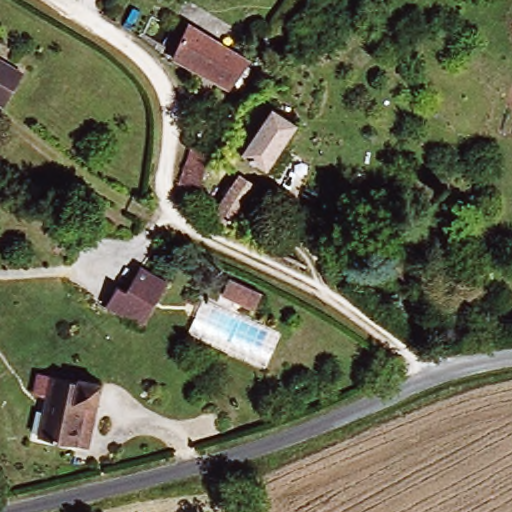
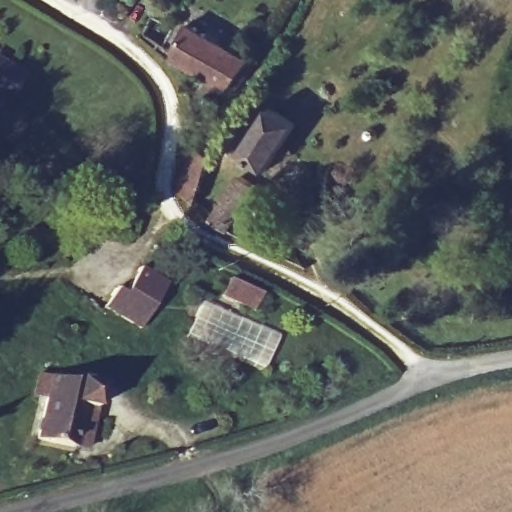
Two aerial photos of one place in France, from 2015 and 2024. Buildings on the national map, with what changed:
unchanged [(189,25),(244,57),(226,88),(172,60),(189,25)]
unchanged [(16,71),(0,98),(0,61),(16,71)]
unchanged [(277,155),(268,169),(239,151),(266,105),(296,121),(283,145),(292,151),(286,161),(277,155)]
unchanged [(211,163),(190,203),(174,190),(192,148),(211,163)]
unchanged [(212,209),(239,168),(256,178),(253,187),(264,195),(246,231),(212,209)]
unchanged [(113,293),(122,296),(135,269),(140,272),(160,283),(144,316),(137,312),(131,323),(105,310),(113,293)]
unchanged [(271,294),(263,310),(233,294),(241,278),(271,294)]
unchanged [(70,441),(34,432),(42,395),(27,392),(33,369),(48,373),(48,370),(74,377),(76,370),(101,377),(95,401),(85,445),(70,441)]

